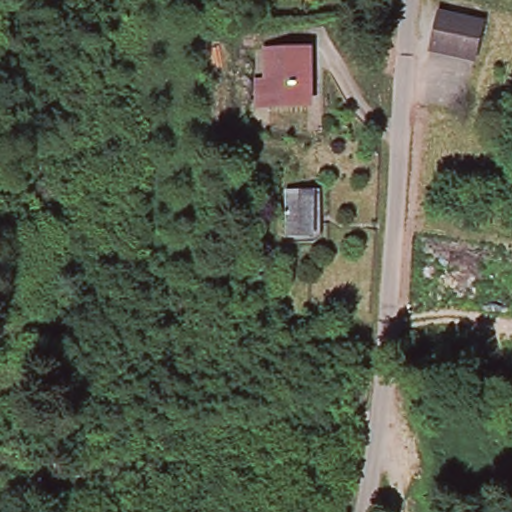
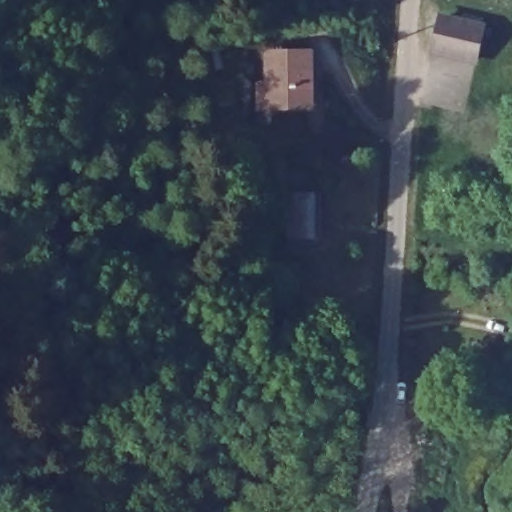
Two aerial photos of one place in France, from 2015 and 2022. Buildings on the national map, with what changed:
unchanged [(483,32),(475,65),(433,55),(441,21),(483,32)]
unchanged [(261,90),(269,90),(270,57),(309,57),(308,110),(269,109),(261,109),(261,90)]
unchanged [(318,189),(320,240),(294,241),(292,190),(318,189)]

